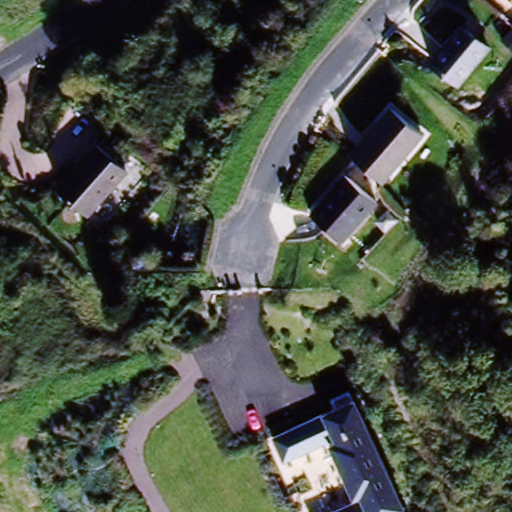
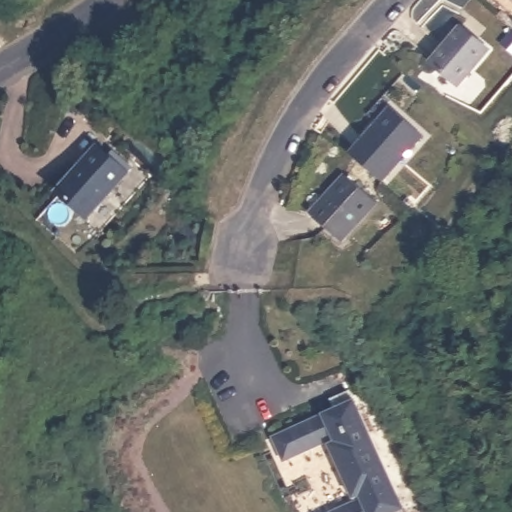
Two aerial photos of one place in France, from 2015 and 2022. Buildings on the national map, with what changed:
unchanged [(429,66),(460,30),(487,53),(456,89),(429,66)]
unchanged [(391,110),(422,139),(382,184),(350,156),(391,110)]
unchanged [(130,177),(87,222),(60,194),(101,151),(130,177)]
unchanged [(344,235),(313,206),(347,169),(378,197),(344,235)]
unchanged [(478,362),(484,398),(470,400),(465,362),(469,325),(482,326),(478,362)]
unchanged [(333,512),(355,502),(328,440),(286,459),(275,435),(355,400),(402,512),(333,512)]

